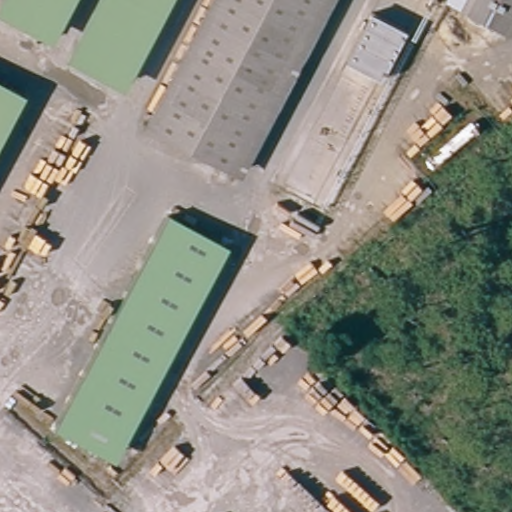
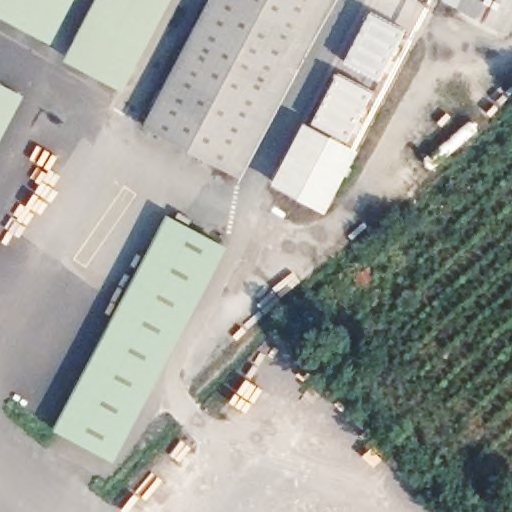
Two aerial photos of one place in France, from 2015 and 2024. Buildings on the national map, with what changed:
unchanged [(0,14),(0,0),(76,0),(54,42),(0,14)]
unchanged [(66,57),(73,44),(96,0),(172,0),(124,90),(66,57)]
unchanged [(240,180),(152,132),(214,0),(325,0),(240,180)]
new [(444,0),(466,0),(461,9),(444,0)]
unchanged [(461,9),(466,0),(512,0),(512,27),(508,36),(461,9)]
unchanged [(347,61),(371,12),(407,30),(383,79),(347,61)]
demolished [(392,93),(359,159),(328,144),(330,138),(306,127),(337,66),(392,93)]
new [(337,72),(376,92),(353,145),(310,123),(337,72)]
unchanged [(26,95),(0,144),(0,81),(26,95)]
new [(304,120),(310,123),(353,145),(358,148),(325,213),(271,183),(304,120)]
unchanged [(56,429),(169,214),(230,245),(115,459),(56,429)]

